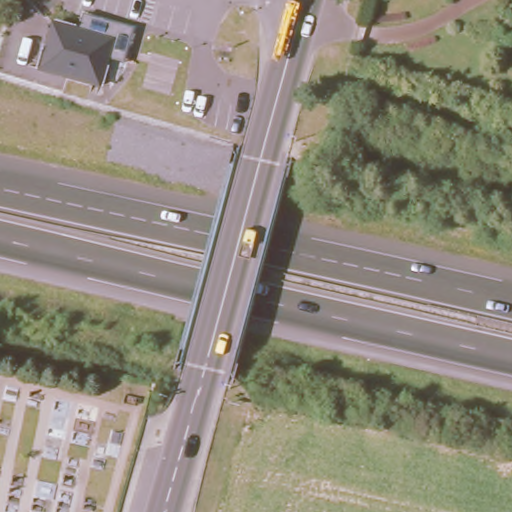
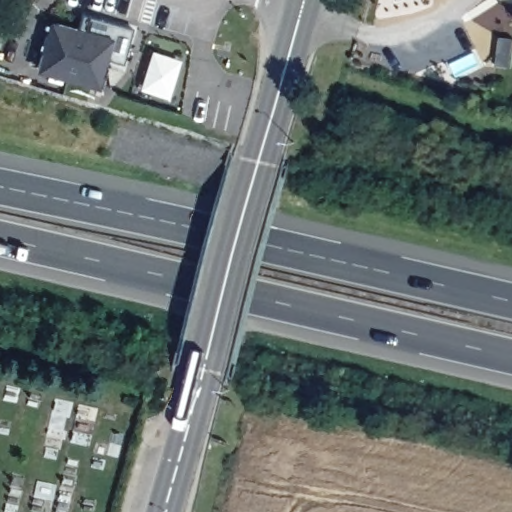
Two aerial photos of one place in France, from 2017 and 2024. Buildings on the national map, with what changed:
unchanged [(36,71),(50,23),(79,32),(83,16),(133,32),(123,66),(108,61),(99,91),(36,71)]

